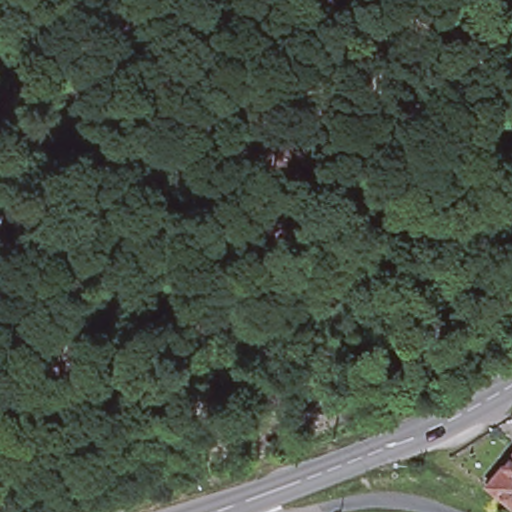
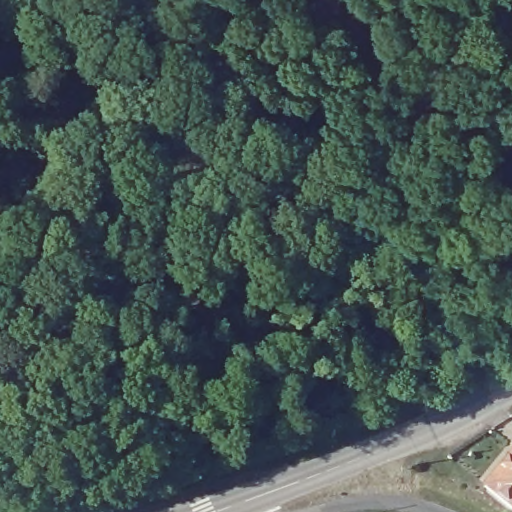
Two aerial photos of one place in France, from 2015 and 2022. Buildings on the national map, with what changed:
unchanged [(512,451),(512,512),(482,487),(512,451)]

